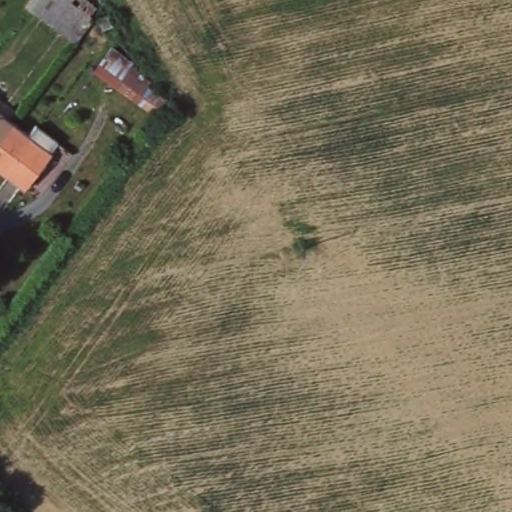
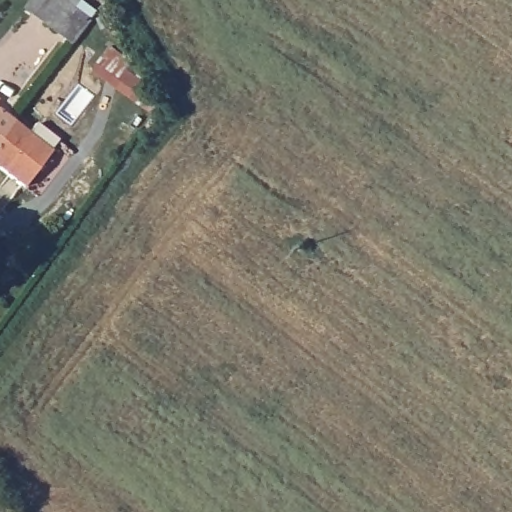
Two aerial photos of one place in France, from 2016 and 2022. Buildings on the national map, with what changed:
unchanged [(76,0),(94,13),(87,22),(75,38),(29,4),(32,0),(76,0)]
unchanged [(131,62),(115,86),(89,71),(110,46),(131,62)]
unchanged [(9,125),(0,138),(0,119),(9,125)]
unchanged [(9,125),(11,124),(25,135),(33,125),(57,143),(48,152),(51,153),(23,189),(0,170),(0,138),(9,125)]

